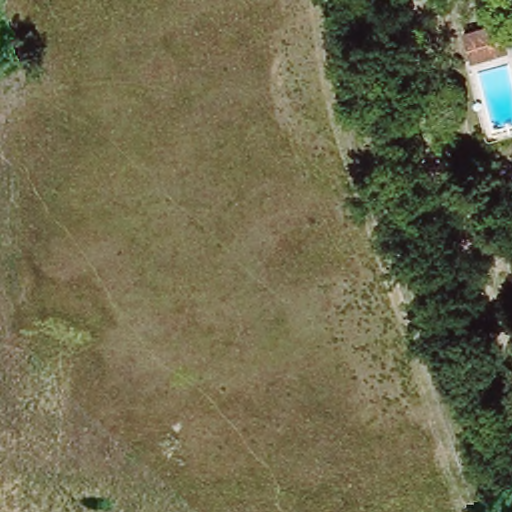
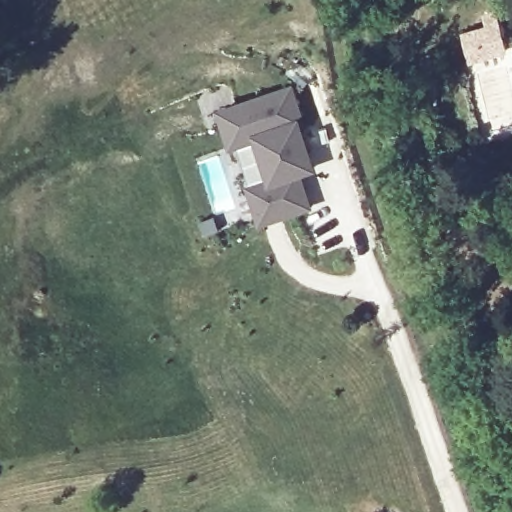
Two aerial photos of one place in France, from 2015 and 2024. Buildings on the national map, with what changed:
unchanged [(468,61),(465,48),(461,32),(486,23),(484,13),(493,11),(502,39),(504,50),(468,61)]
new [(294,175),(305,208),(257,224),(246,190),(242,192),(214,109),(286,86),(298,124),(294,126),(306,165),(308,170),(294,175)]

